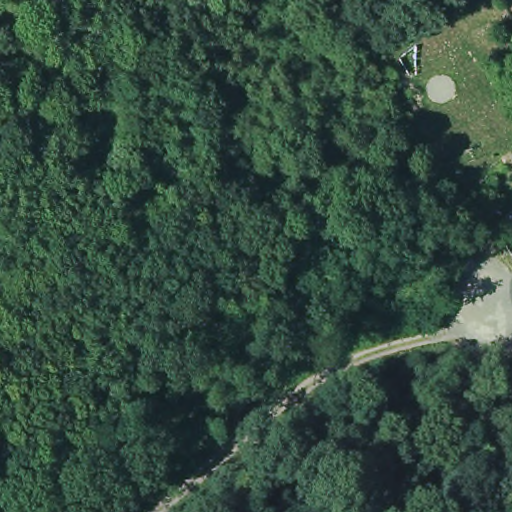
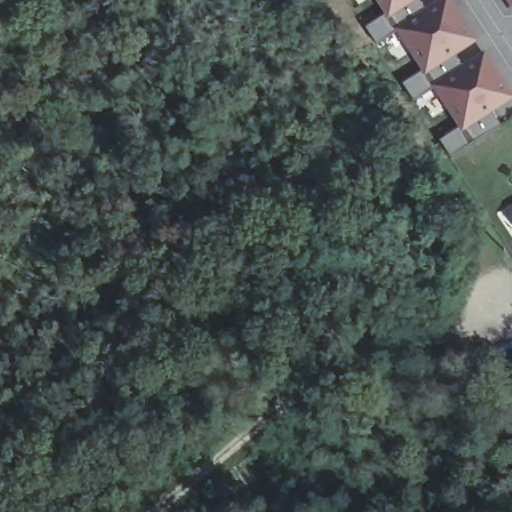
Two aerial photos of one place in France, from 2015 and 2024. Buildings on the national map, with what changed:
new [(436,0),(451,0),(477,41),(455,55),(462,64),(484,51),(512,93),(512,100),(494,111),(502,125),(448,158),(437,142),(457,129),(432,90),(412,102),(401,84),(421,73),(396,33),(373,48),(363,29),(384,16),(374,0),(419,0),(424,8),(436,0)]
new [(506,0),(512,0),(512,9),(506,0)]
unchanged [(512,115),(507,108),(512,105),(512,115)]
unchanged [(309,251),(315,249),(319,249),(325,253),(326,259),(324,264),(317,268),(312,267),(307,261),(307,255),(309,251)]
unchanged [(195,316),(199,313),(206,314),(210,317),(212,322),(210,328),(205,332),(200,332),(195,329),(192,324),(192,320),(195,316)]

